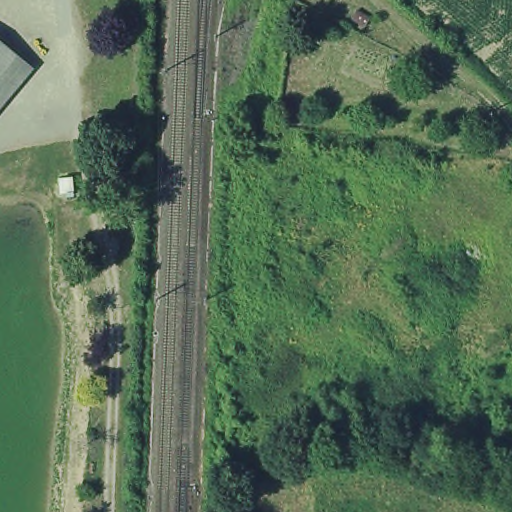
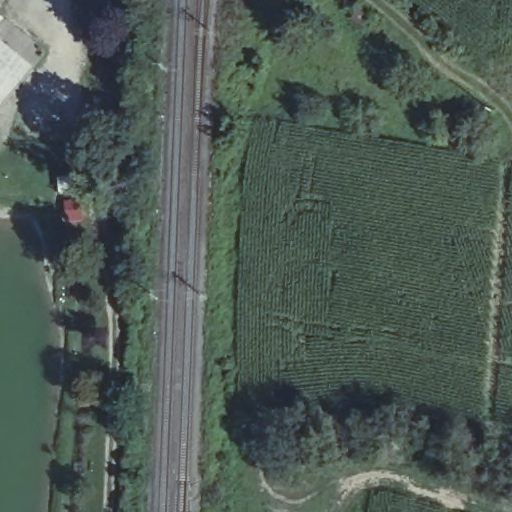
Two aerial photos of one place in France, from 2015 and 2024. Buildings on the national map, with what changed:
unchanged [(0,68),(0,36),(15,46),(0,68)]
unchanged [(0,104),(0,68),(15,46),(31,58),(0,104)]

